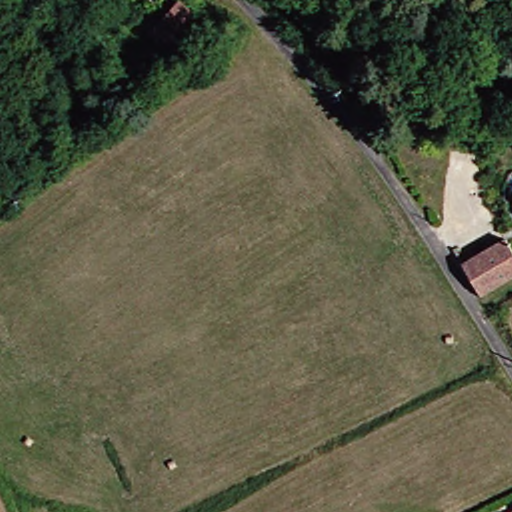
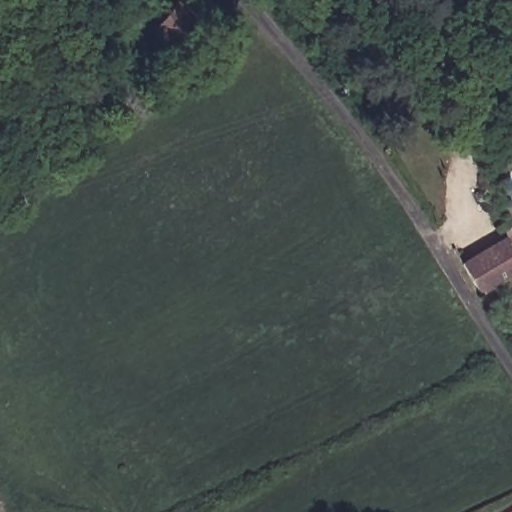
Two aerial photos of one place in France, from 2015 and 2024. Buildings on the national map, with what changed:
unchanged [(149,25),(175,0),(178,0),(193,12),(165,43),(149,25)]
unchanged [(486,292),(469,263),(512,243),(512,279),(486,292)]

